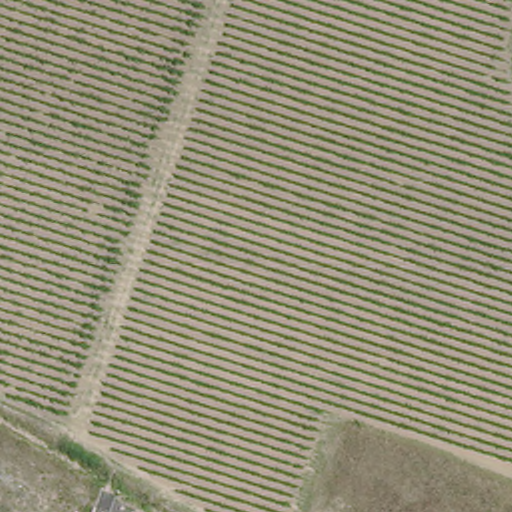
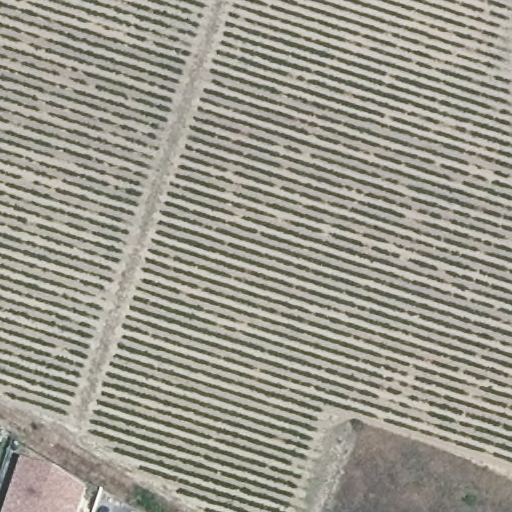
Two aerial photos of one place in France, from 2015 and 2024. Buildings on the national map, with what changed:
new [(0,452),(0,437),(4,439),(0,452)]
new [(87,489),(80,512),(4,512),(21,460),(56,470),(87,489)]

